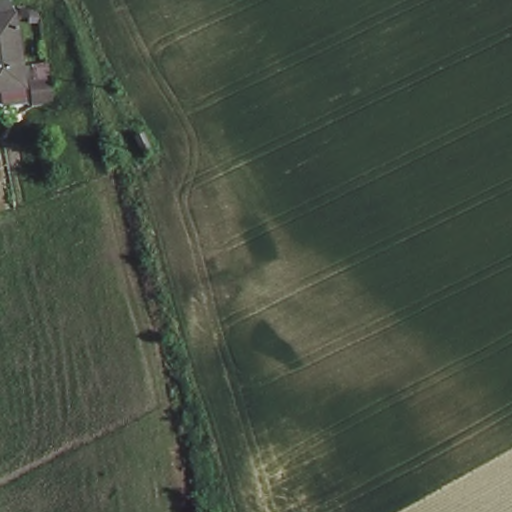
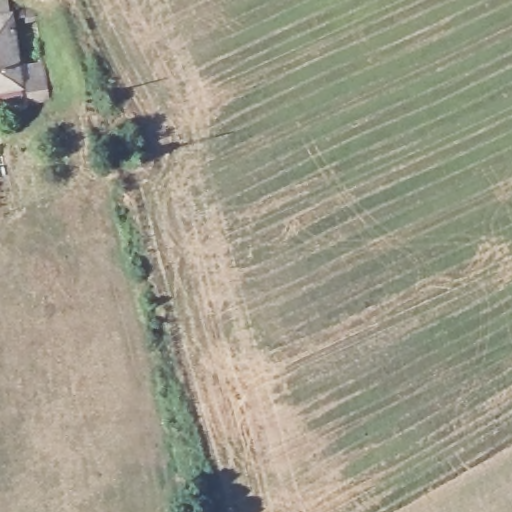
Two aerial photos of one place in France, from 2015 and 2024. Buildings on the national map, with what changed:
unchanged [(28,82),(0,91),(0,17),(5,15),(28,82)]
unchanged [(76,59),(60,64),(55,45),(70,40),(76,59)]
unchanged [(122,137),(132,132),(136,130),(142,141),(127,149),(122,137)]

